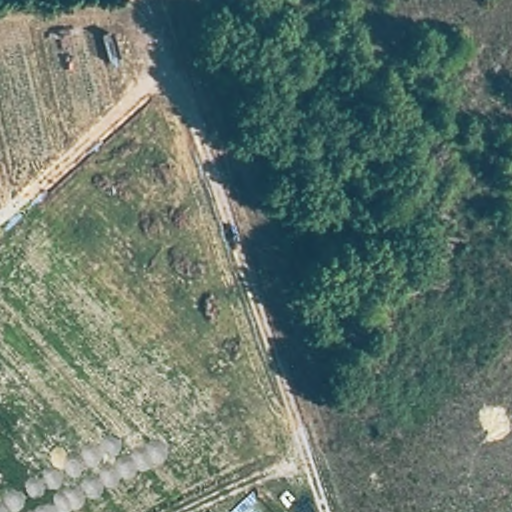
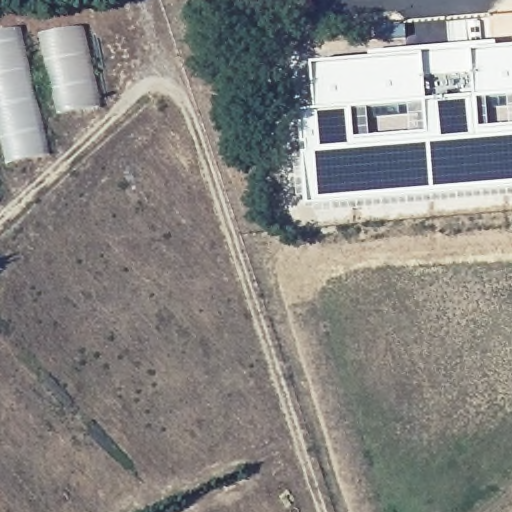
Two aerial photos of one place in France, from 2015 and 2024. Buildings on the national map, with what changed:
new [(42,118),(50,154),(0,165),(0,31),(20,29),(21,35),(84,27),(99,105),(42,118)]
new [(309,112),(305,62),(365,55),(365,52),(493,40),(495,47),(512,46),(512,190),(495,190),(302,209),(295,114),(309,112)]

